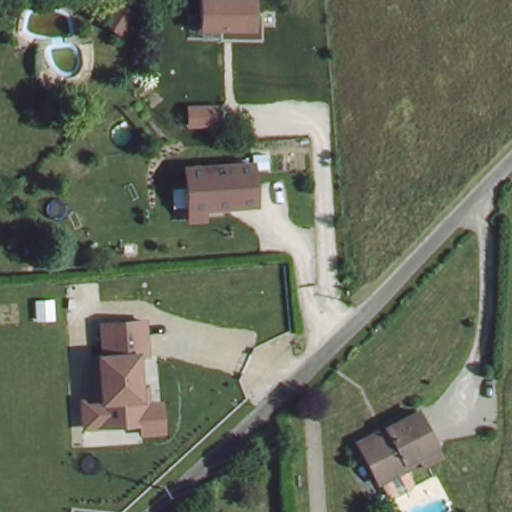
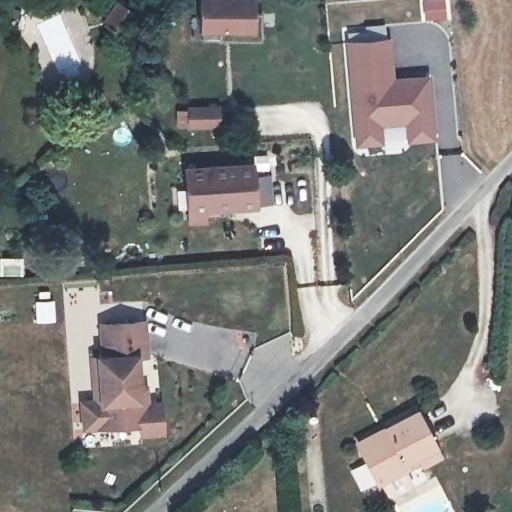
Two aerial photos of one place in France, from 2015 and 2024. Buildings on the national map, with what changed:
unchanged [(256,14),(262,14),(262,40),(220,40),(219,30),(199,30),(199,0),(256,0),(256,14)]
unchanged [(120,4),(136,17),(120,37),(104,24),(120,4)]
new [(390,34),(393,73),(429,73),(430,134),(404,134),(404,118),(382,119),(382,141),(352,139),(350,34),(390,34)]
unchanged [(212,108),(213,126),(183,127),(182,109),(212,108)]
unchanged [(255,202),(209,205),(209,217),(186,219),(182,160),(254,156),(255,202)]
unchanged [(142,358),(144,383),(150,383),(151,401),(164,401),(165,435),(140,437),(138,426),(84,431),(81,393),(101,392),(100,321),(148,318),(151,356),(142,358)]
unchanged [(374,431),(379,433),(387,429),(385,425),(416,409),(440,456),(420,465),(414,453),(403,459),(405,464),(403,465),(410,479),(409,485),(391,494),(385,492),(378,477),(376,479),(356,439),(374,431)]

